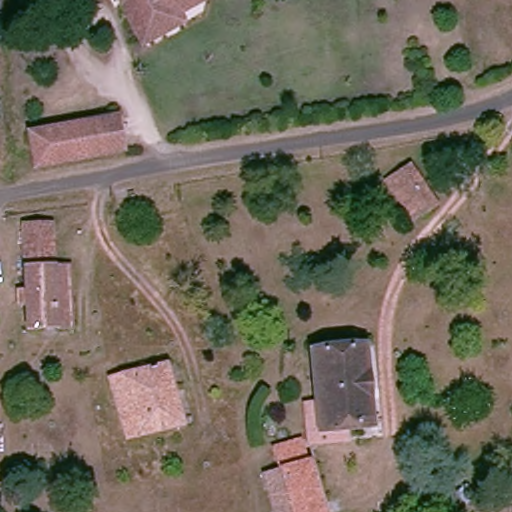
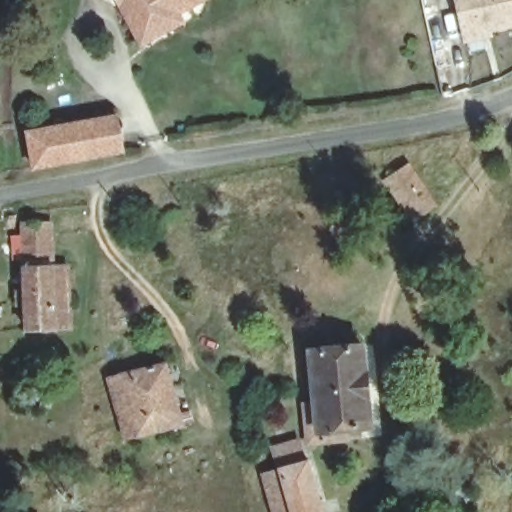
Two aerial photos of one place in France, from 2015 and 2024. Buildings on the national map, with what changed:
unchanged [(114,0),(189,0),(170,11),(166,22),(139,39),(130,26),(114,0)]
new [(464,44),(455,0),(512,0),(512,27),(490,31),(491,38),(464,44)]
unchanged [(34,166),(26,130),(97,115),(114,111),(122,147),(118,148),(105,151),(34,166)]
unchanged [(432,209),(417,223),(380,177),(395,163),(432,209)]
unchanged [(30,330),(24,234),(51,233),(65,233),(67,264),(53,264),(56,329),(30,330)]
unchanged [(316,428),(315,391),(295,393),(294,373),(313,371),(312,352),(365,349),(371,426),(316,428)]
unchanged [(168,364),(184,422),(127,438),(110,379),(168,364)]
unchanged [(275,461),(302,452),(321,512),(292,512),(275,461)]
unchanged [(49,472),(51,484),(32,488),(30,474),(49,472)]

